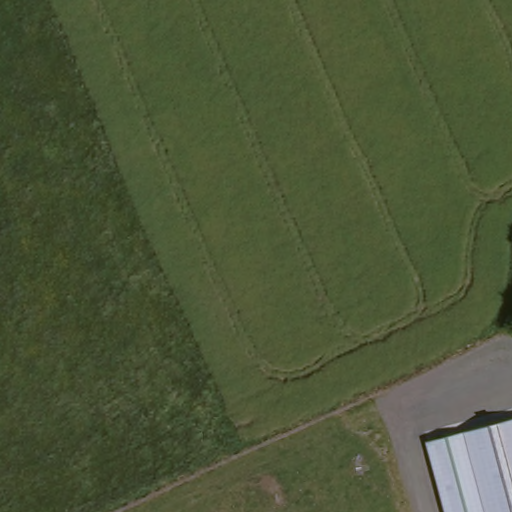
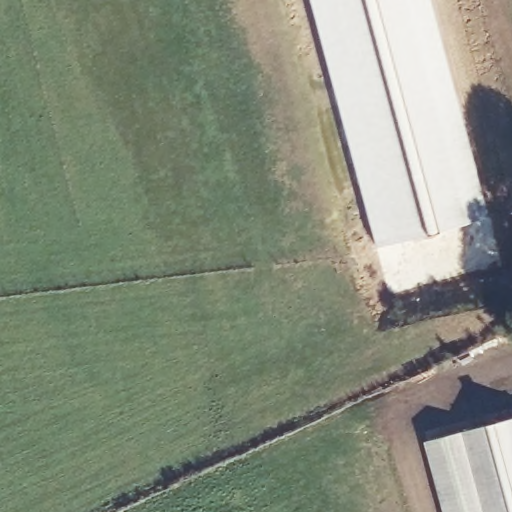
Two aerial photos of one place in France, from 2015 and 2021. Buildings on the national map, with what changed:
new [(387,292),(307,0),(426,0),(498,261),(387,292)]
new [(512,417),(512,512),(445,512),(426,441),(512,417)]

